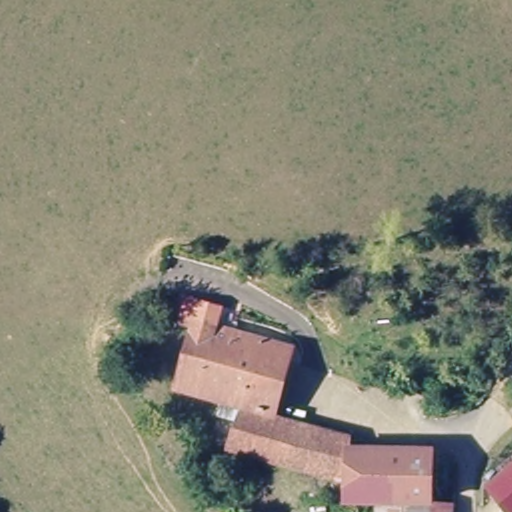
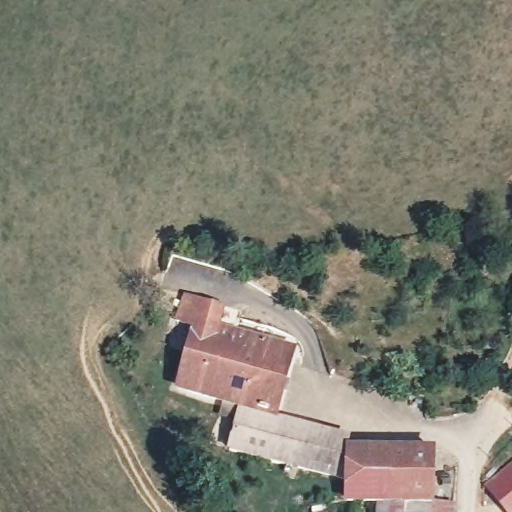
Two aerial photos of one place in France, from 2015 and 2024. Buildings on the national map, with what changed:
unchanged [(175,323),(183,292),(227,308),(222,324),(196,317),(193,328),(175,323)]
unchanged [(251,411),(180,392),(197,323),(256,339),(292,351),(273,417),(251,411)]
unchanged [(273,417),(342,435),(341,445),(338,479),(325,477),(244,456),(251,411),(273,417)]
unchanged [(423,495),(371,495),(337,494),(338,479),(341,445),(424,447),(423,495)]
unchanged [(485,484),(512,462),(512,512),(506,512),(485,484)]
unchanged [(371,495),(423,495),(423,512),(371,512),(371,495)]
unchanged [(442,512),(423,512),(423,495),(442,496),(442,512)]

